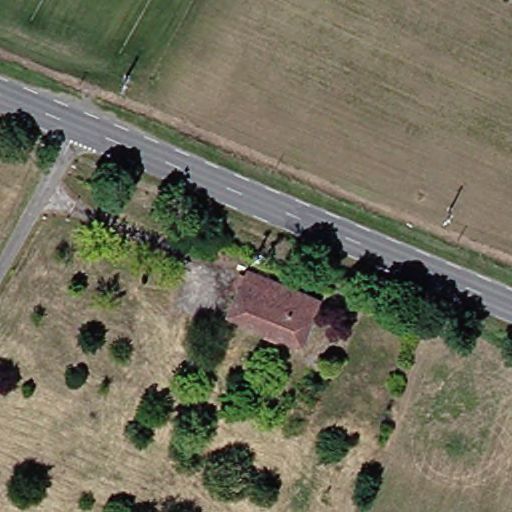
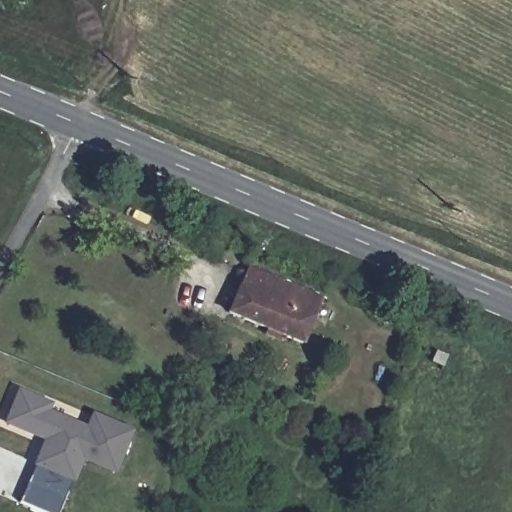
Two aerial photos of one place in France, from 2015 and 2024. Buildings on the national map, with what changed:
unchanged [(250,269),(320,294),(300,340),(229,315),(250,269)]
new [(51,402),(48,409),(89,426),(95,412),(134,427),(117,467),(84,454),(69,449),(61,471),(39,462),(48,437),(36,432),(8,421),(20,389),(51,402)]
new [(39,462),(61,471),(69,449),(84,454),(69,493),(32,478),(39,462)]
new [(32,478),(69,493),(62,512),(49,512),(23,502),(32,478)]

